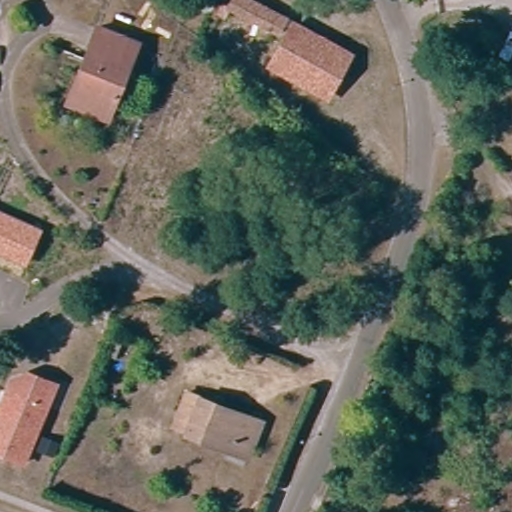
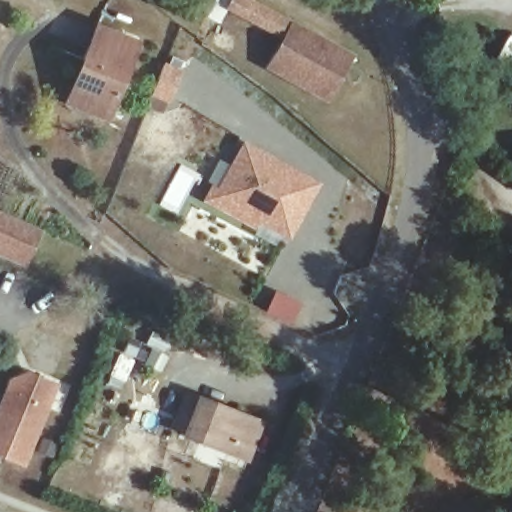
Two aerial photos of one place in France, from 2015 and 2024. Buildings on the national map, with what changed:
unchanged [(228,2),(221,15),(211,10),(203,6),(206,0),(255,0),(286,17),(279,30),(228,2)]
unchanged [(328,93),(272,62),(295,21),(351,52),(328,93)]
unchanged [(86,61),(100,27),(141,44),(110,120),(92,112),(69,103),(86,61)]
new [(163,66),(180,72),(169,101),(164,114),(147,107),(152,95),(163,66)]
new [(243,145),(286,169),(270,200),(300,217),(287,237),(256,221),(261,212),(219,189),(243,145)]
new [(286,169),(316,186),(300,217),(270,200),(286,169)]
unchanged [(27,269),(0,258),(0,211),(44,230),(27,269)]
unchanged [(117,354),(108,351),(116,332),(125,336),(117,354)]
unchanged [(0,460),(0,398),(8,377),(25,370),(58,382),(24,468),(0,460)]
unchanged [(182,436),(170,431),(177,412),(184,394),(260,424),(246,461),(182,436)]

